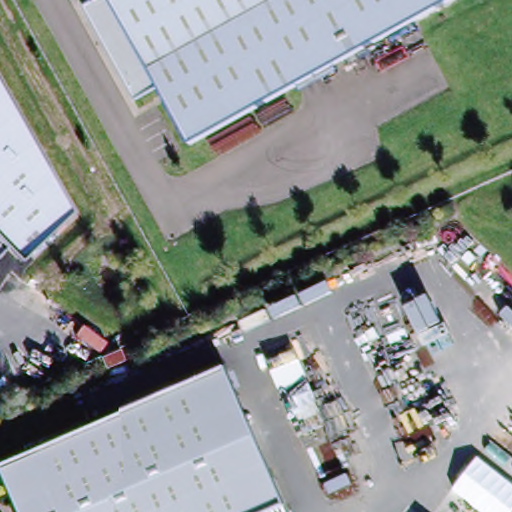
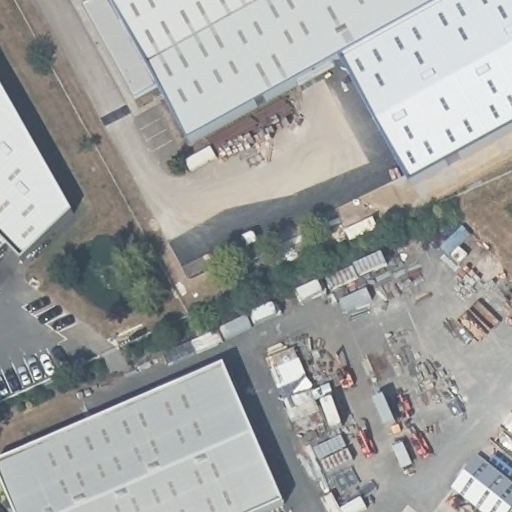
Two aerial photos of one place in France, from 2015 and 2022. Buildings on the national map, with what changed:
unchanged [(193,144),(151,67),(125,82),(84,7),(89,5),(86,0),(457,0),(193,144)]
new [(457,0),(512,0),(512,123),(408,177),(347,61),(457,0)]
unchanged [(0,85),(73,214),(22,262),(11,253),(0,242),(0,85)]
unchanged [(0,263),(0,242),(11,253),(0,263)]
unchanged [(284,505),(267,512),(240,512),(184,383),(224,366),(284,505)]
unchanged [(0,463),(184,383),(240,512),(14,512),(0,479),(0,463)]

